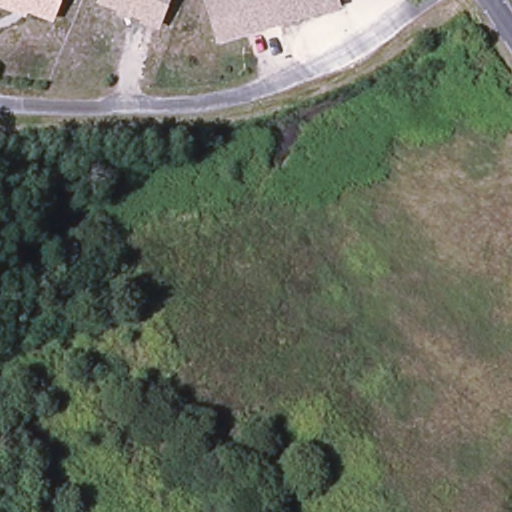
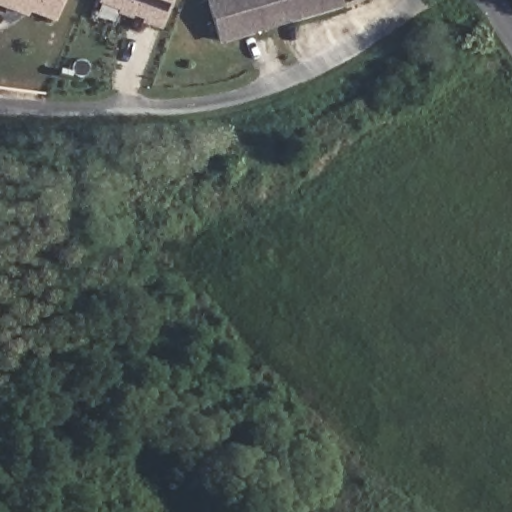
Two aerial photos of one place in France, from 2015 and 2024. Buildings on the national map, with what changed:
unchanged [(0,8),(0,0),(60,0),(49,24),(23,12),(21,17),(0,8)]
unchanged [(159,26),(99,1),(99,0),(169,0),(159,26)]
unchanged [(337,2),(219,41),(205,0),(336,0),(337,2)]

